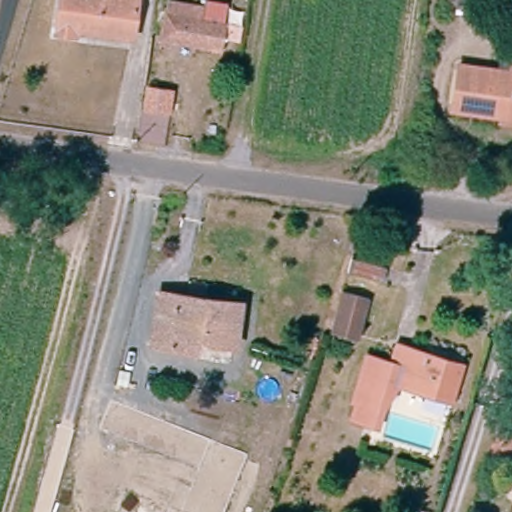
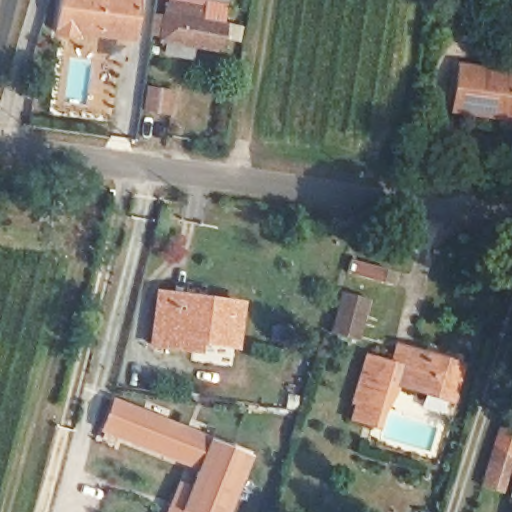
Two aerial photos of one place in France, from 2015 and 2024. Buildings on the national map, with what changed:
unchanged [(132,43),(76,35),(75,43),(56,39),(62,0),(115,0),(136,3),(132,43)]
unchanged [(442,0),(479,0),(477,18),(441,11),(442,0)]
unchanged [(167,15),(176,17),(179,4),(205,10),(204,21),(225,26),(220,50),(163,41),(167,15)]
unchanged [(473,71),(512,78),(512,122),(466,115),(473,71)]
unchanged [(175,89),(172,110),(152,108),(155,85),(175,89)]
unchanged [(382,279),(350,268),(356,254),(386,263),(382,279)]
unchanged [(234,349),(204,346),(203,354),(150,347),(156,292),(239,302),(234,349)]
unchanged [(357,339),(332,330),(344,294),(369,301),(357,339)]
unchanged [(398,389),(383,384),(391,361),(396,346),(418,353),(466,367),(453,406),(403,392),(398,389)]
unchanged [(383,384),(398,389),(388,414),(386,414),(379,433),(348,424),(352,406),(350,404),(364,354),(391,361),(383,384)]
new [(176,483),(189,488),(195,469),(100,430),(112,398),(209,438),(252,455),(228,512),(165,512),(176,483)]
unchanged [(512,428),(512,455),(492,451),(501,424),(512,428)]
unchanged [(510,471),(512,471),(512,495),(507,494),(510,471)]

